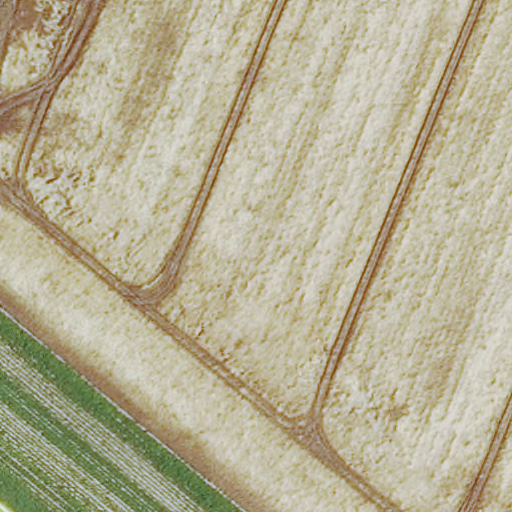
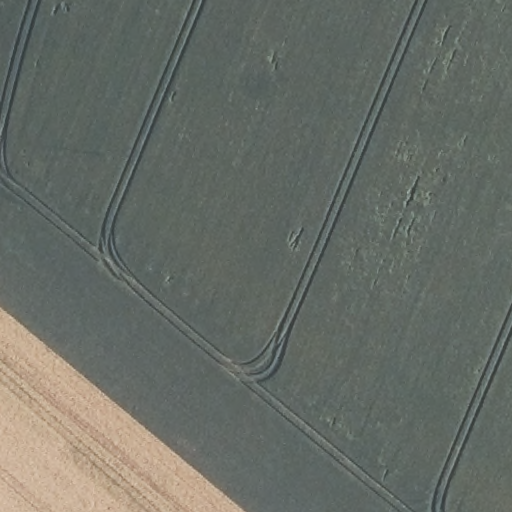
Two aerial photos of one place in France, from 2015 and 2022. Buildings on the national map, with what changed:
[]

